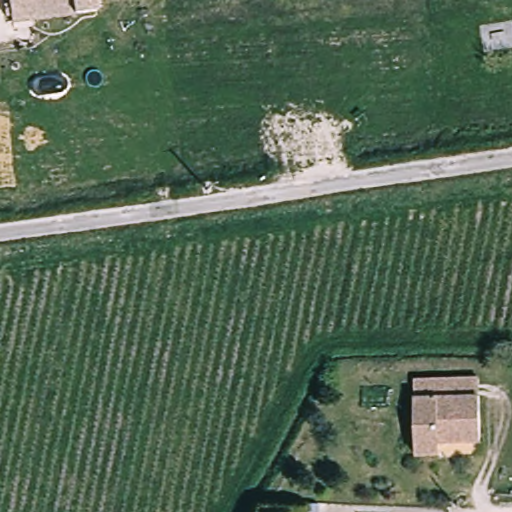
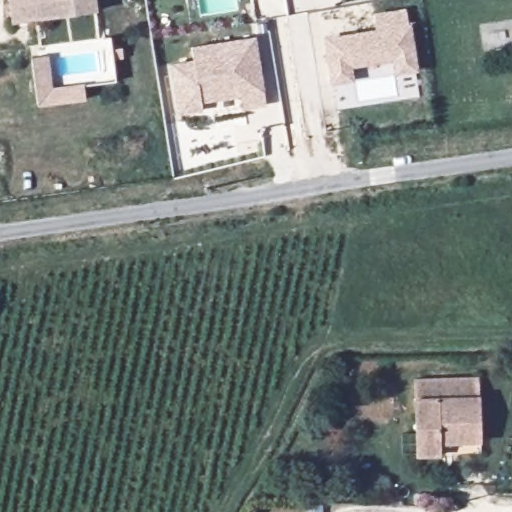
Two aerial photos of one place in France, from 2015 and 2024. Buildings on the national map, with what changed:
unchanged [(20,7),(18,0),(56,0),(20,7)]
unchanged [(106,3),(107,9),(104,10),(85,13),(82,0),(105,0),(106,3)]
new [(377,29),(375,14),(407,9),(410,25),(412,25),(419,72),(396,76),(393,62),(353,68),(355,82),(332,86),(323,38),(377,29)]
new [(194,60),(192,47),(257,37),(267,106),(244,110),(241,97),(203,104),(203,111),(178,115),(171,65),(194,60)]
unchanged [(444,452),(421,453),(418,377),(482,374),(484,439),(484,450),(444,452)]

